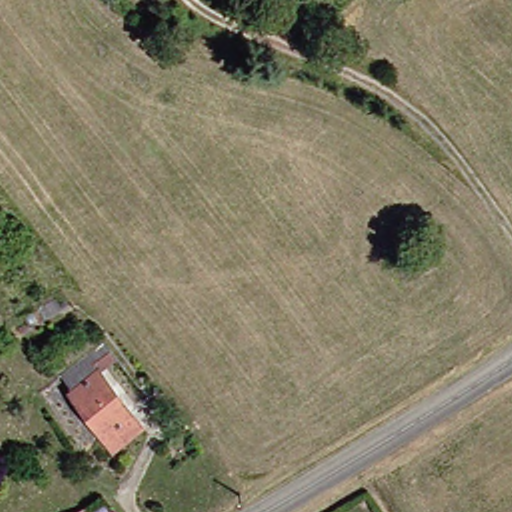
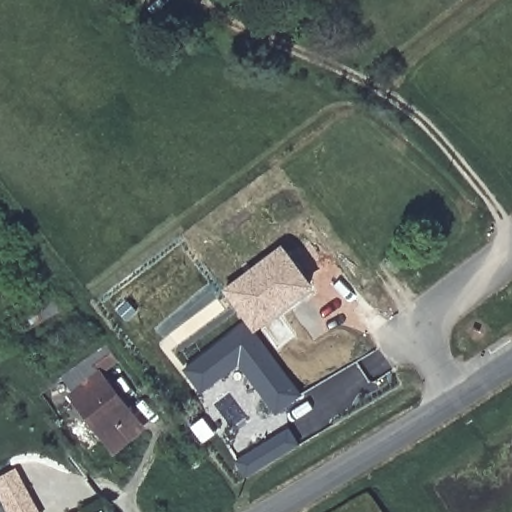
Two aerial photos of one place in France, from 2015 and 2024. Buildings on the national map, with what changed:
new [(256,332),(303,393),(277,413),(240,364),(202,392),(185,369),(247,323),(222,288),(282,243),(315,288),(256,332)]
unchanged [(70,393),(59,379),(103,346),(115,360),(96,375),(139,431),(110,453),(67,397),(70,393)]
new [(302,443),(245,477),(236,461),(291,427),(302,443)]
new [(41,512),(8,512),(0,498),(0,476),(16,467),(41,512)]
unchanged [(82,507),(84,512),(74,512),(82,507)]

